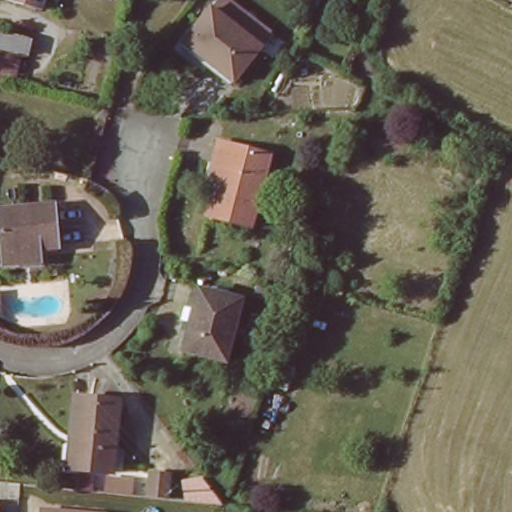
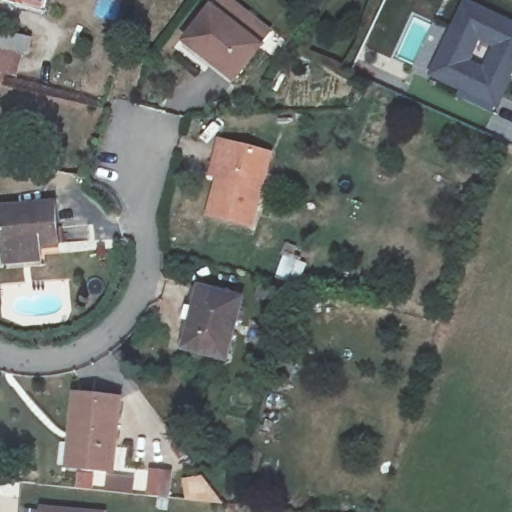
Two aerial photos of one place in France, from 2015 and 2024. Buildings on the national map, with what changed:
unchanged [(45,0),(42,12),(4,0),(45,0)]
new [(433,81),(466,9),(512,30),(512,86),(510,85),(502,104),(498,111),(461,94),(433,81)]
unchanged [(210,10),(260,49),(233,84),(183,45),(210,10)]
unchanged [(22,32),(8,81),(0,80),(0,40),(3,28),(22,32)]
unchanged [(271,157),(250,230),(208,218),(219,180),(211,177),(214,168),(221,141),(271,157)]
unchanged [(59,243),(0,251),(0,247),(0,206),(53,200),(59,243)]
unchanged [(245,301),(228,362),(186,351),(203,290),(245,301)]
unchanged [(121,405),(108,474),(65,466),(77,397),(121,405)]
unchanged [(91,512),(40,512),(40,507),(91,512)]

